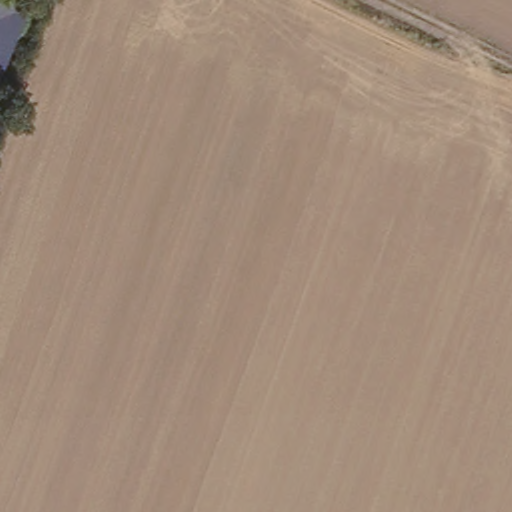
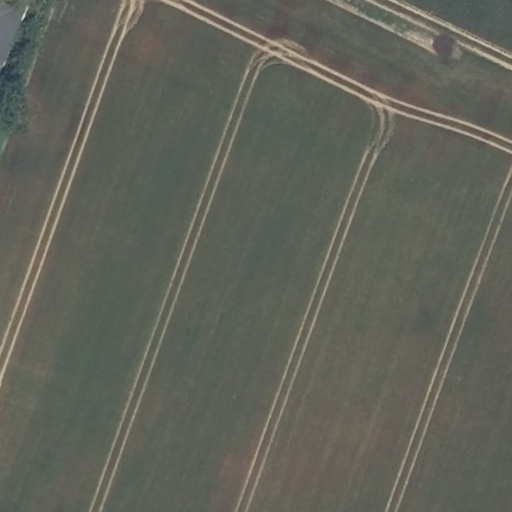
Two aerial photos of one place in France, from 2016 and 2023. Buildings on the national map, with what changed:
unchanged [(0,85),(0,32),(11,9),(0,4),(0,0),(38,0),(0,85)]
unchanged [(0,12),(0,4),(11,9),(0,32),(0,17),(2,12),(0,12)]

